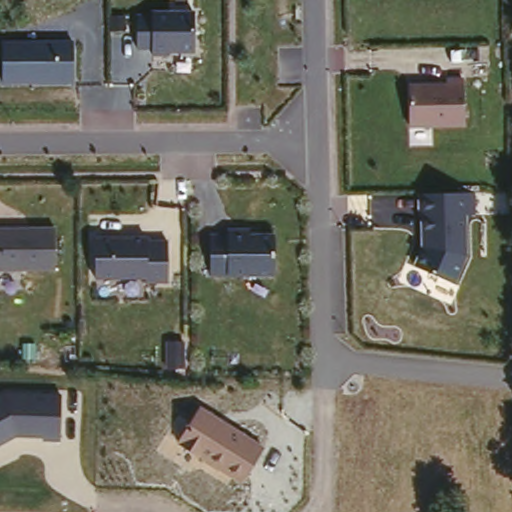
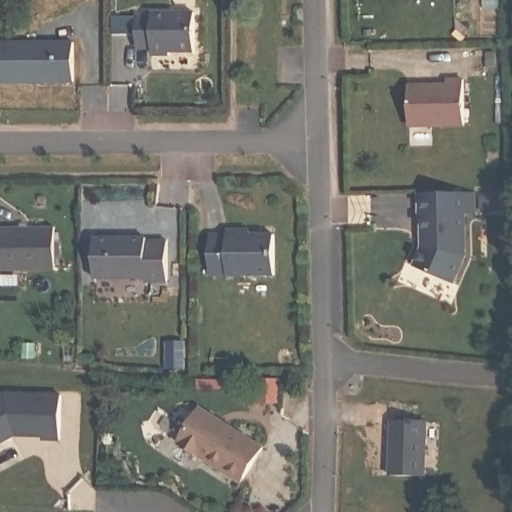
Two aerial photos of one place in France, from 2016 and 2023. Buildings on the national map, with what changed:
unchanged [(136,15),(152,14),(196,14),(195,55),(152,56),(152,48),(136,48),(136,15)]
unchanged [(73,83),(0,84),(0,42),(73,42),(73,83)]
unchanged [(408,126),(409,86),(463,86),(464,127),(408,127),(408,126)]
unchanged [(421,248),(419,193),(463,193),(474,192),(476,216),(466,216),(468,257),(454,285),(412,269),(421,248)]
unchanged [(56,269),(0,270),(0,228),(56,229),(56,269)]
unchanged [(209,235),(212,235),(275,235),(274,275),(208,276),(209,235)]
unchanged [(96,238),(167,240),(167,279),(95,280),(96,238)]
unchanged [(0,394),(4,392),(61,395),(60,437),(16,437),(0,445),(0,394)]
unchanged [(177,442),(201,406),(264,446),(240,483),(177,442)]
new [(431,479),(392,479),(392,422),(430,423),(431,479)]

